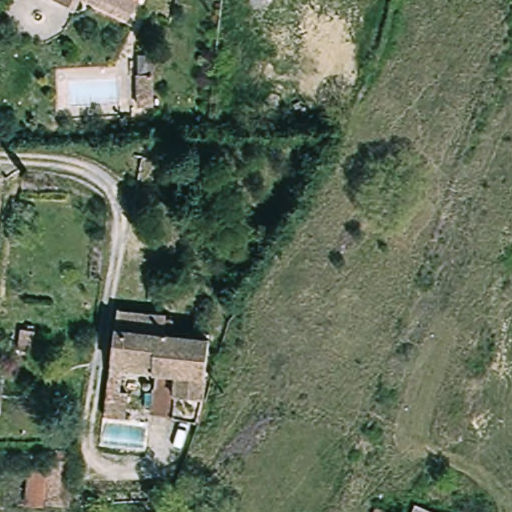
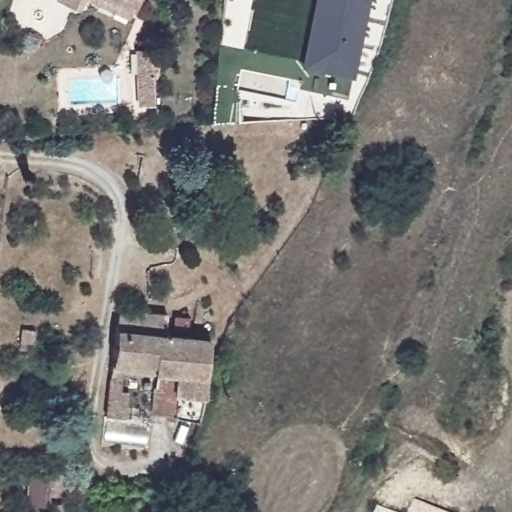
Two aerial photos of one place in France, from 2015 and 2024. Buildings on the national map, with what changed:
unchanged [(66,0),(81,0),(78,6),(66,0)]
unchanged [(119,0),(139,0),(136,8),(119,0)]
new [(369,0),(353,77),(301,67),(315,0),(369,0)]
unchanged [(157,72),(158,105),(141,106),(139,73),(157,72)]
unchanged [(168,311),(164,332),(211,335),(206,397),(199,422),(154,410),(157,371),(116,367),(118,326),(121,307),(168,311)]
unchanged [(52,457),(77,458),(73,496),(50,493),(52,457)]
unchanged [(437,512),(422,512),(425,509),(429,507),(437,512)]
unchanged [(401,510),(405,512),(400,512),(401,510)]

